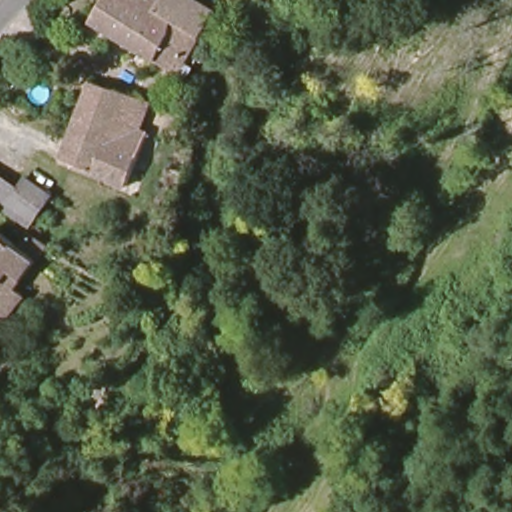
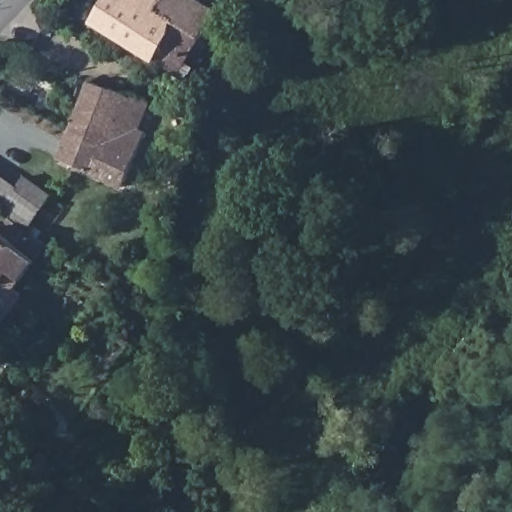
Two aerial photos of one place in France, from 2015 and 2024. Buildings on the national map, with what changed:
unchanged [(158,57),(92,17),(103,0),(212,0),(223,7),(207,32),(181,19),(158,57)]
unchanged [(181,19),(207,32),(213,37),(213,44),(218,47),(213,57),(204,53),(190,75),(158,57),(181,19)]
unchanged [(71,131),(91,80),(128,92),(153,100),(142,127),(148,129),(127,184),(60,157),(71,131)]
unchanged [(28,173),(55,194),(32,227),(0,209),(0,168),(20,184),(28,173)]
unchanged [(47,245),(18,294),(7,287),(15,277),(6,270),(2,274),(0,276),(0,228),(5,222),(5,221),(47,245)]
unchanged [(6,270),(15,277),(7,287),(18,294),(23,297),(24,297),(19,305),(22,310),(19,313),(11,312),(0,326),(0,276),(2,274),(6,270)]

